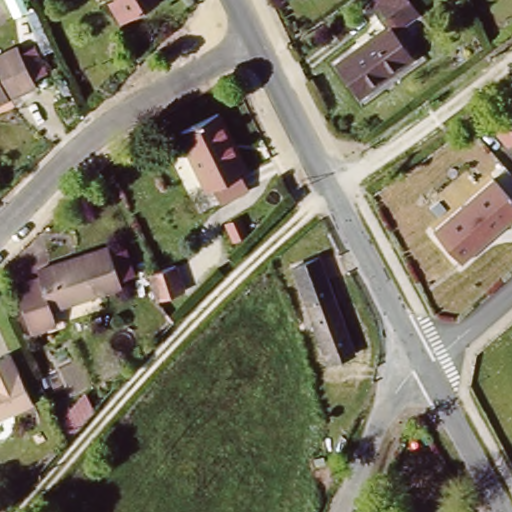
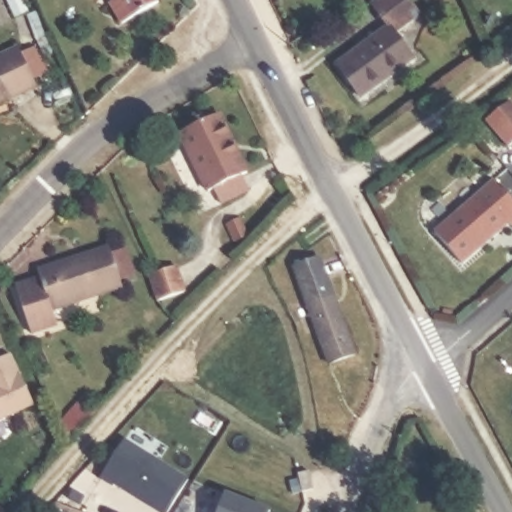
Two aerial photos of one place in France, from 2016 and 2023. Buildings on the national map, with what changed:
unchanged [(160,8),(121,29),(110,7),(115,5),(112,0),(156,0),(160,8)]
unchanged [(359,95),(331,62),(382,19),(370,4),(376,0),(408,0),(417,14),(392,34),(407,55),(359,95)]
unchanged [(0,109),(0,59),(19,50),(38,90),(0,109)]
unchanged [(488,123),(512,102),(512,144),(508,147),(488,123)]
unchanged [(247,185),(216,200),(209,185),(205,187),(180,134),(222,113),(248,166),(240,170),(247,185)]
unchanged [(434,229),(495,178),(512,198),(512,222),(462,263),(434,229)]
unchanged [(35,278),(101,247),(119,286),(52,316),(60,332),(36,343),(13,294),(37,283),(35,278)]
unchanged [(322,256),(359,354),(327,365),(292,266),(322,256)]
unchanged [(200,283),(177,294),(166,271),(190,260),(200,283)]
unchanged [(0,356),(8,354),(30,413),(0,425),(0,356)]
new [(90,390),(99,410),(74,439),(64,419),(90,390)]
new [(159,512),(112,483),(111,485),(97,477),(122,437),(187,478),(167,512),(159,512)]
new [(271,509),(270,512),(215,512),(224,490),(271,509)]

